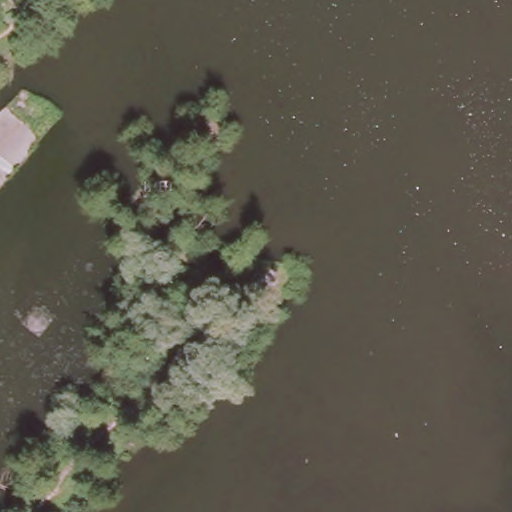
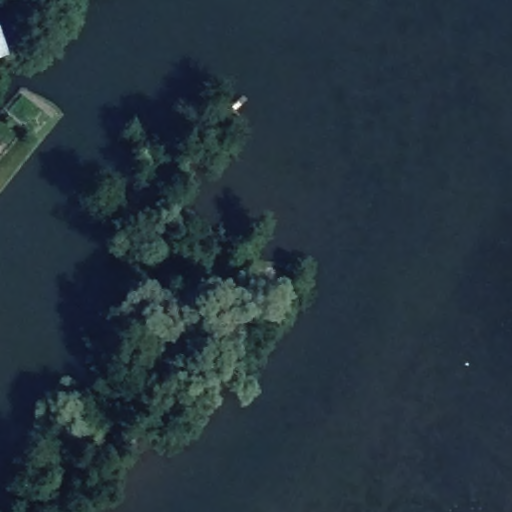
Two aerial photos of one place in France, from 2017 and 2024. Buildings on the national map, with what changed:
unchanged [(205,339),(186,360),(177,350),(195,330),(205,339)]
unchanged [(162,372),(152,385),(140,374),(151,362),(162,372)]

